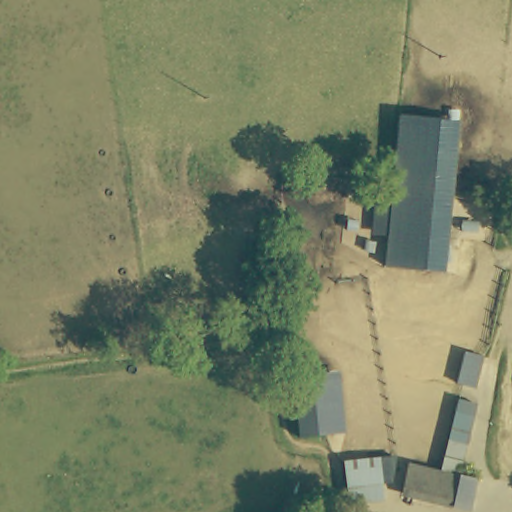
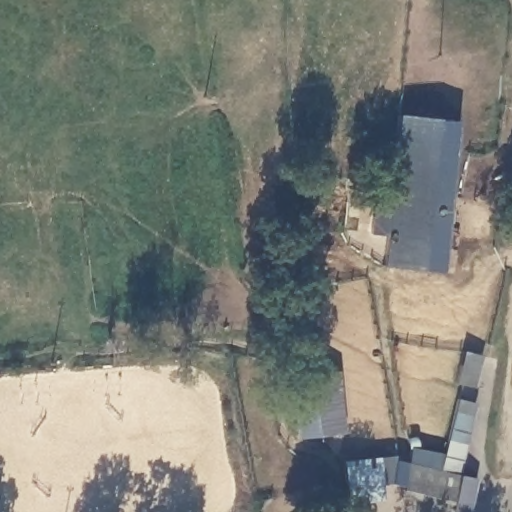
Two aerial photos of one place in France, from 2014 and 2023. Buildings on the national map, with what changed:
unchanged [(385,270),(392,178),(393,163),(395,135),(396,120),(436,123),(435,142),(432,172),(431,187),(424,273),(385,270)]
unchanged [(484,356),(477,387),(460,384),(467,352),(484,356)]
unchanged [(303,370),(335,369),(337,430),(307,431),(303,431),(301,371),(303,370)]
unchanged [(463,509),(451,506),(444,504),(445,500),(397,488),(404,463),(434,470),(450,397),(474,403),(458,476),(472,479),(463,509)]
unchanged [(376,456),(391,456),(391,460),(386,480),(359,481),(359,497),(341,498),(340,457),(376,456)]

